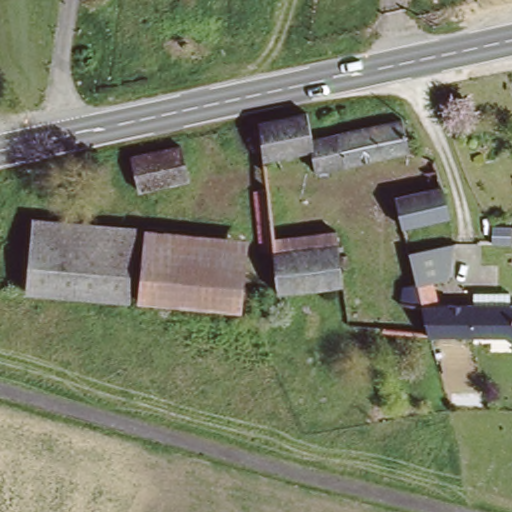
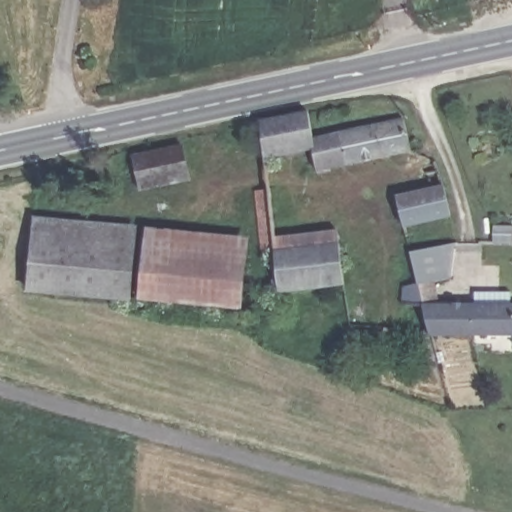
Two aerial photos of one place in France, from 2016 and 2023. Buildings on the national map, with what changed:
unchanged [(306,107),(311,134),(400,113),(403,132),(407,147),(327,162),(328,165),(314,168),(309,145),(264,154),(259,117),(306,107)]
unchanged [(180,141),(190,179),(138,192),(128,153),(180,141)]
unchanged [(400,228),(393,202),(428,193),(425,174),(436,172),(446,218),(400,228)]
unchanged [(258,266),(251,199),(267,197),(272,249),(273,265),(258,266)]
unchanged [(135,239),(128,309),(75,304),(26,299),(34,230),(68,233),(135,239)]
unchanged [(506,234),(506,251),(488,251),(488,242),(488,234),(506,234)]
unchanged [(147,240),(248,251),(240,322),(140,312),(147,240)]
unchanged [(337,243),(342,297),(277,303),(273,265),(272,249),(337,243)]
unchanged [(446,253),(446,286),(415,289),(407,261),(446,253)]

